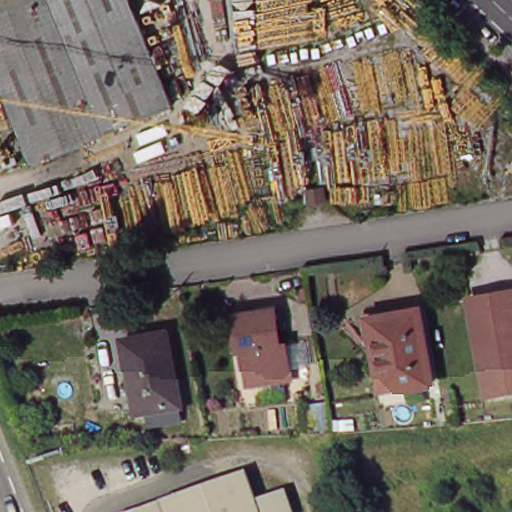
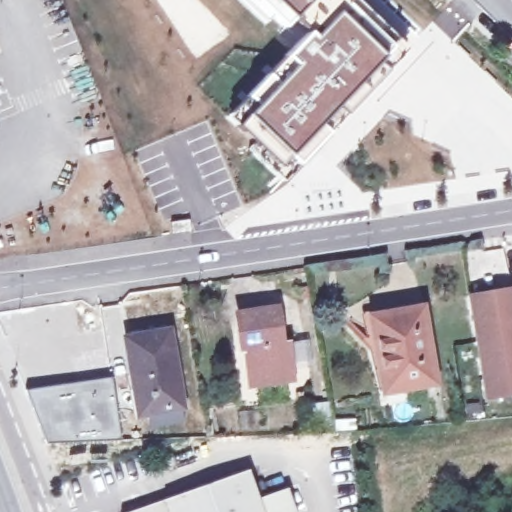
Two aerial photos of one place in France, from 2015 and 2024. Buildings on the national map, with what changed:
demolished [(34,165),(0,80),(0,0),(131,0),(174,108),(34,165)]
new [(404,48),(297,163),(280,180),(247,149),(225,127),(232,120),(227,116),(247,96),(238,88),(285,39),(275,31),(257,29),(226,0),(379,0),(416,35),(404,48)]
unchanged [(478,342),(470,305),(512,297),(512,397),(490,401),(486,381),(478,342)]
unchanged [(379,317),(422,309),(435,382),(385,391),(380,361),(386,360),(379,317)]
unchanged [(277,344),(284,343),(290,379),(252,387),(245,351),(242,352),(235,317),(270,310),(277,344)]
unchanged [(124,339),(166,331),(181,407),(139,415),(124,339)]
new [(115,375),(122,438),(44,443),(25,388),(115,375)]
unchanged [(255,502),(281,493),(288,512),(137,512),(244,473),(255,502)]

